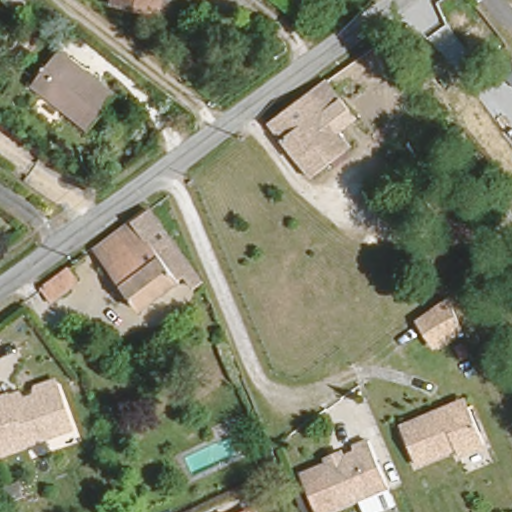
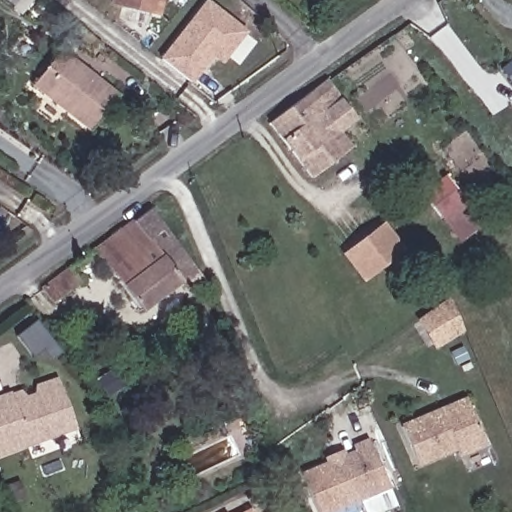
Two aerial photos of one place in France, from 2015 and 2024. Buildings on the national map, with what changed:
unchanged [(140,0),(160,0),(159,4),(140,0)]
new [(206,3),(244,33),(221,62),(212,55),(190,83),(161,60),(206,3)]
unchanged [(33,84),(60,50),(117,96),(90,130),(33,84)]
unchanged [(326,76),(340,95),(323,109),(349,144),(310,174),(269,119),(326,76)]
new [(457,239),(443,219),(427,194),(453,180),(470,205),(483,225),(457,239)]
unchanged [(149,205),(203,278),(194,284),(185,273),(139,307),(94,246),(149,205)]
new [(385,223),(405,249),(365,278),(346,253),(385,223)]
unchanged [(69,269),(79,283),(50,304),(40,290),(69,269)]
unchanged [(434,349),(417,320),(449,298),(465,330),(434,349)]
unchanged [(18,389),(22,394),(35,391),(32,383),(56,374),(78,428),(0,455),(0,395),(18,389)]
unchanged [(460,456),(456,447),(418,467),(401,430),(438,410),(463,398),(467,406),(484,443),(460,456)]
unchanged [(347,452),(363,446),(383,491),(333,512),(311,512),(297,481),(350,458),(347,452)]
unchanged [(250,512),(248,512),(249,511),(250,512)]

